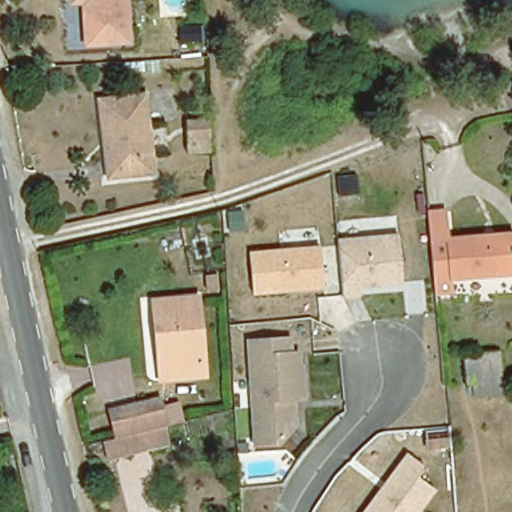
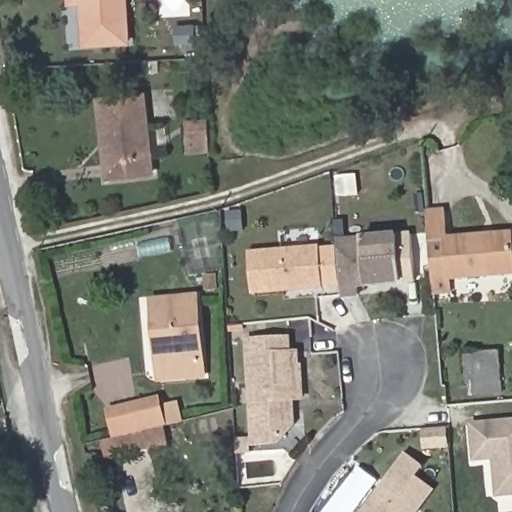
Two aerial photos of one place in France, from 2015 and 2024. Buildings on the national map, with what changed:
unchanged [(134,42),(90,44),(88,2),(75,2),(75,0),(131,0),(134,42)]
unchanged [(179,42),(179,25),(200,24),(201,41),(179,42)]
unchanged [(146,89),(155,166),(108,172),(99,95),(146,89)]
unchanged [(188,131),(210,129),(210,131),(210,147),(188,149),(188,131)]
unchanged [(433,273),(428,207),(444,206),(446,234),(512,227),(512,267),(451,272),(453,287),(434,288),(433,273)]
unchanged [(403,284),(359,287),(359,297),(343,298),(338,242),(399,237),(403,284)]
unchanged [(164,260),(162,250),(177,246),(179,257),(164,260)]
unchanged [(324,289),(253,295),(249,255),(320,249),(324,289)]
unchanged [(218,272),(220,290),(207,292),(204,275),(218,272)]
unchanged [(158,357),(153,296),(198,292),(204,371),(165,374),(159,375),(158,357)]
unchanged [(302,399),(292,400),(294,425),(278,443),(254,445),(248,342),(289,340),(289,354),(297,354),(298,367),(300,367),(302,399)]
unchanged [(475,396),(474,385),(468,386),(466,356),(499,353),(501,382),(502,394),(475,396)]
unchanged [(117,437),(109,410),(159,397),(161,406),(178,402),(182,421),(166,425),(162,427),(166,442),(139,450),(139,452),(105,461),(100,442),(117,437)]
new [(512,419),(512,493),(497,494),(494,457),(474,458),(471,422),(512,419)]
unchanged [(360,512),(402,456),(419,468),(411,478),(428,491),(412,512),(360,512)]

